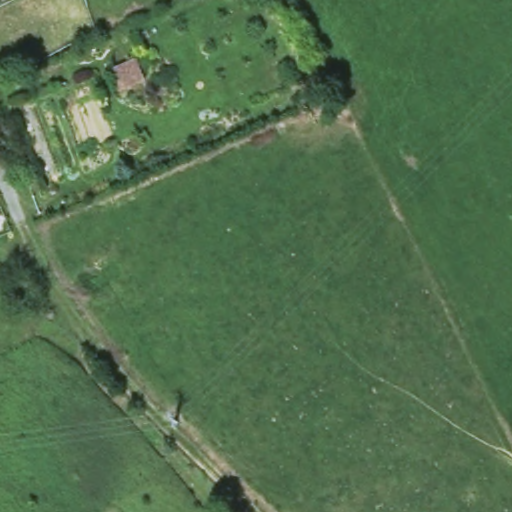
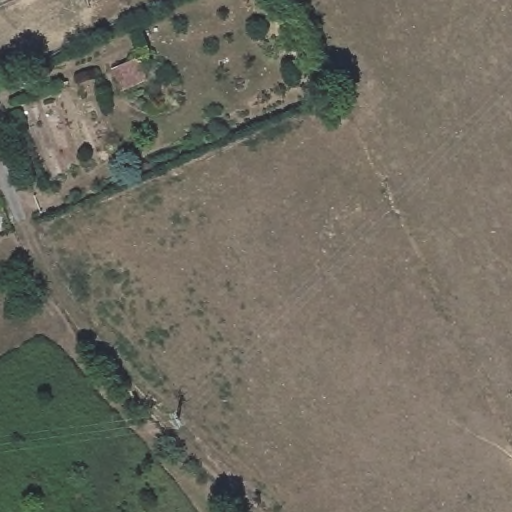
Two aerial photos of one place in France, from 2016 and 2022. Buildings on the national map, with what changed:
unchanged [(139,53),(149,78),(121,89),(110,67),(139,53)]

